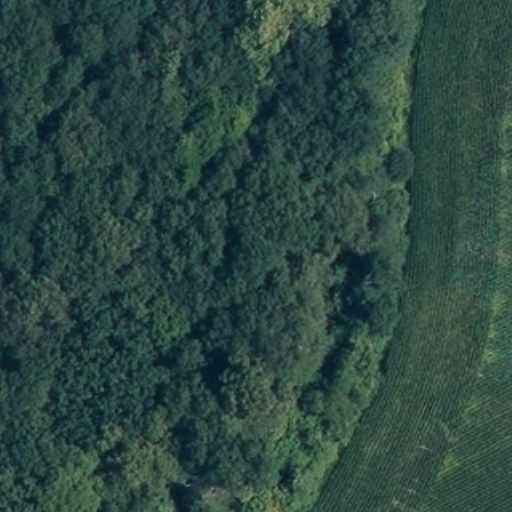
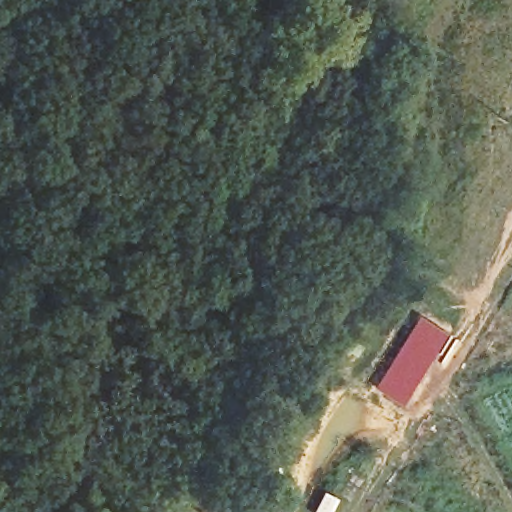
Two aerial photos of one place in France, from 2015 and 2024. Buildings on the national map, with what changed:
new [(426,319),(455,337),(412,408),(383,390),(426,319)]

